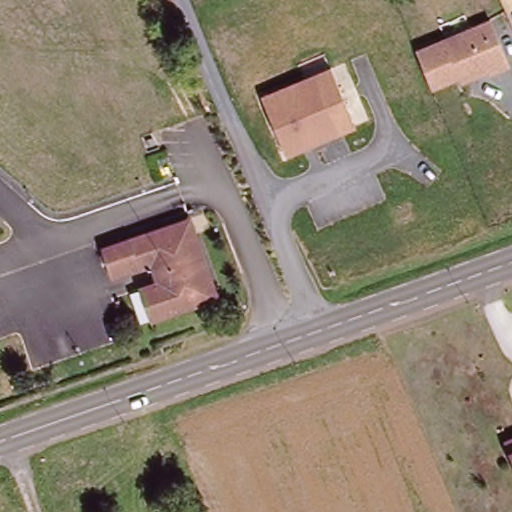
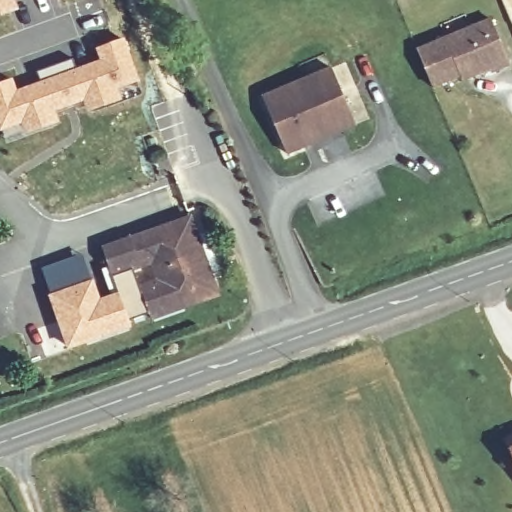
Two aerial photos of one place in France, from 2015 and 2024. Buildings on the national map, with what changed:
new [(12,0),(15,6),(0,11),(0,0),(12,0)]
unchanged [(460,77),(430,89),(414,54),(489,21),(508,66),(490,74),(487,71),(471,78),(462,83),(460,77)]
new [(40,83),(36,71),(72,58),(76,71),(103,60),(98,48),(121,39),(135,79),(113,86),(115,94),(87,104),(85,96),(50,109),(53,116),(2,134),(0,129),(0,82),(12,78),(17,93),(40,83)]
unchanged [(263,94),(333,65),(358,125),(288,155),(263,94)]
unchanged [(144,286),(162,279),(156,261),(115,275),(106,246),(195,214),(221,290),(201,297),(202,302),(155,319),(144,286)]
new [(137,267),(140,273),(144,286),(153,313),(132,320),(135,327),(67,349),(47,296),(92,281),(100,298),(121,291),(115,275),(137,267)]
unchanged [(512,433),(512,442),(509,435),(512,433)]

